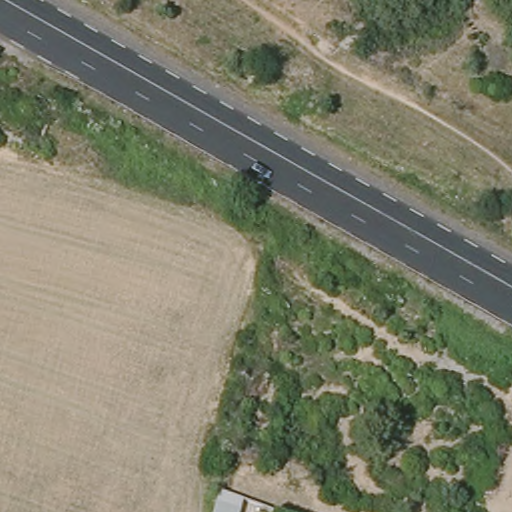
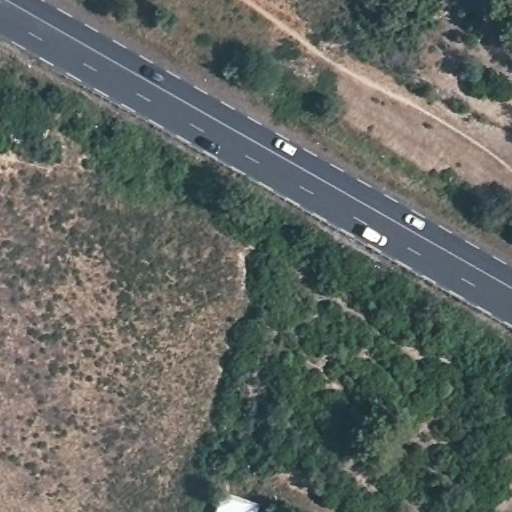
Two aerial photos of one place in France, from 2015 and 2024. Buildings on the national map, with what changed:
unchanged [(220,489),(243,494),(238,512),(214,512),(220,489)]

